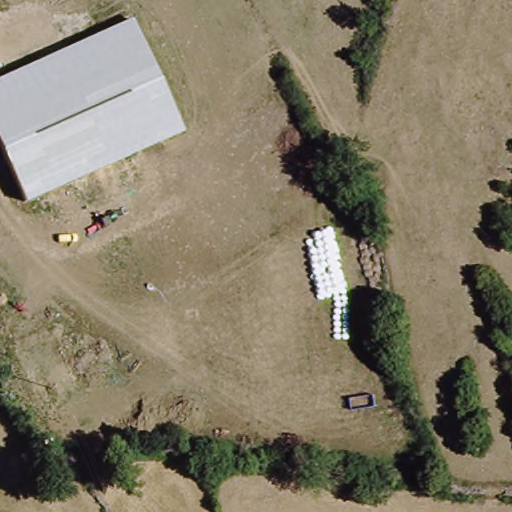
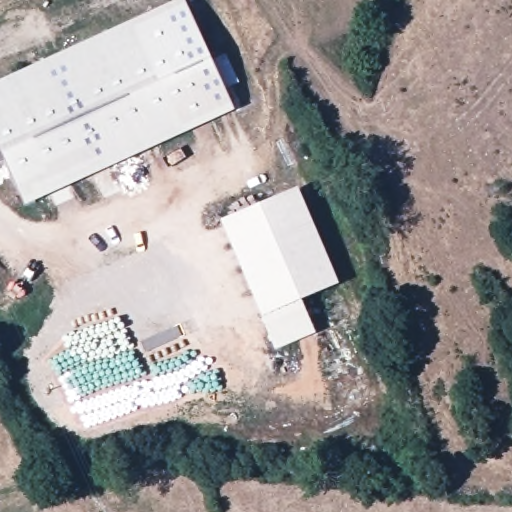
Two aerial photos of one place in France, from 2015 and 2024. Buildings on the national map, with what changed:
new [(174,0),(184,0),(233,110),(185,131),(132,19),(174,0)]
unchanged [(0,146),(0,79),(132,19),(185,131),(27,203),(0,146)]
new [(338,283),(262,316),(220,219),(298,187),(338,283)]
new [(275,349),(262,316),(302,299),(316,332),(275,349)]

